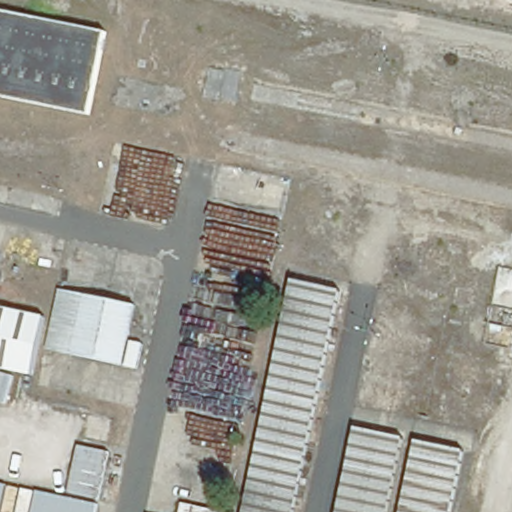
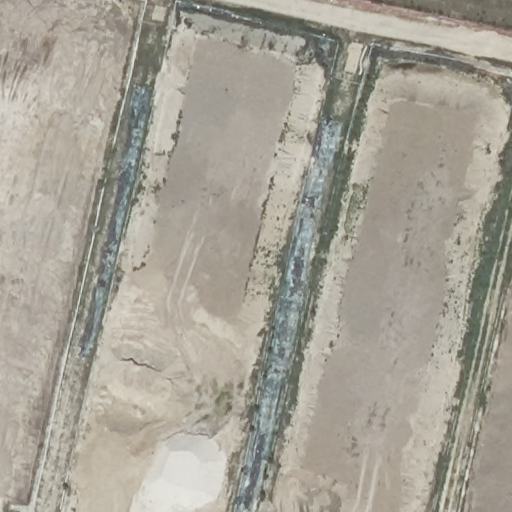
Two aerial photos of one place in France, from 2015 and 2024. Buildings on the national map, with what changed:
demolished [(85,108),(0,92),(0,2),(102,21),(85,108)]
demolished [(246,512),(294,282),(343,292),(296,512),(246,512)]
demolished [(131,365),(56,352),(66,294),(141,307),(131,365)]
demolished [(0,315),(45,323),(36,369),(0,363),(0,315)]
demolished [(404,439),(390,512),(341,512),(358,430),(404,439)]
demolished [(467,452),(454,512),(403,512),(418,441),(467,452)]

